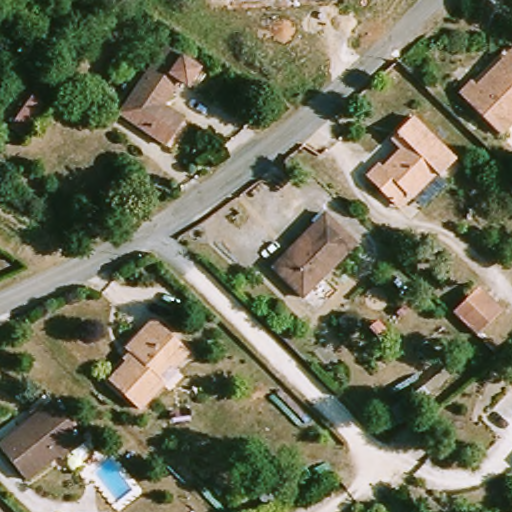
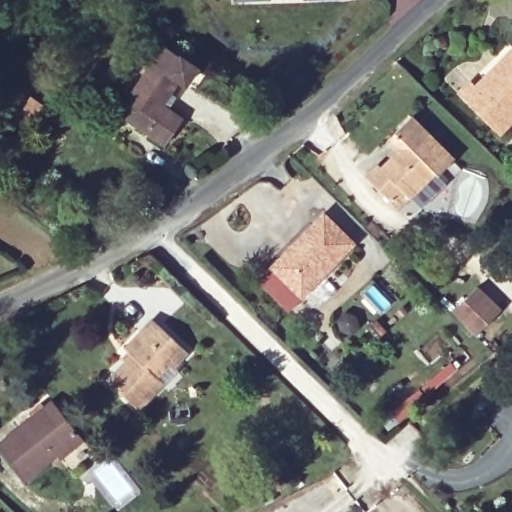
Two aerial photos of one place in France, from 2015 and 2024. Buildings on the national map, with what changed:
unchanged [(194,90),(187,86),(179,96),(200,115),(174,143),(130,103),(177,45),(207,71),(194,90)]
unchanged [(499,75),(512,61),(512,128),(509,131),(471,95),(485,79),(489,84),(499,75)]
unchanged [(402,201),(376,175),(391,160),(396,163),(411,149),(399,136),(408,129),(425,114),(469,156),(453,173),(447,169),(424,191),(409,208),(402,201)]
unchanged [(366,238),(311,295),(279,266),(334,210),(366,238)]
unchanged [(452,312),(450,311),(474,286),(498,309),(474,334),(452,312)]
unchanged [(185,364),(181,362),(168,373),(174,382),(150,404),(120,376),(145,353),(140,348),(137,343),(151,330),(165,318),(198,351),(185,364)]
unchanged [(45,477),(14,447),(62,397),(95,429),(45,477)]

